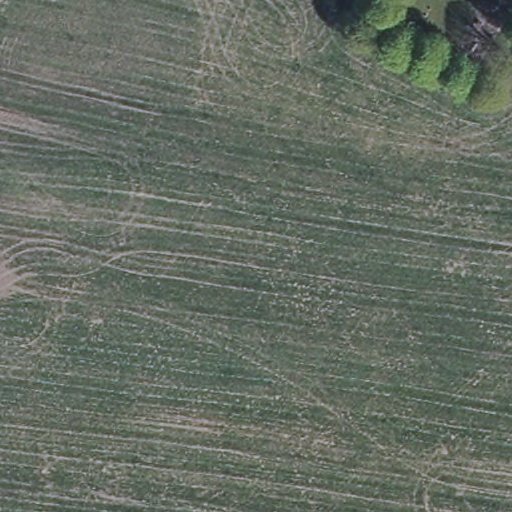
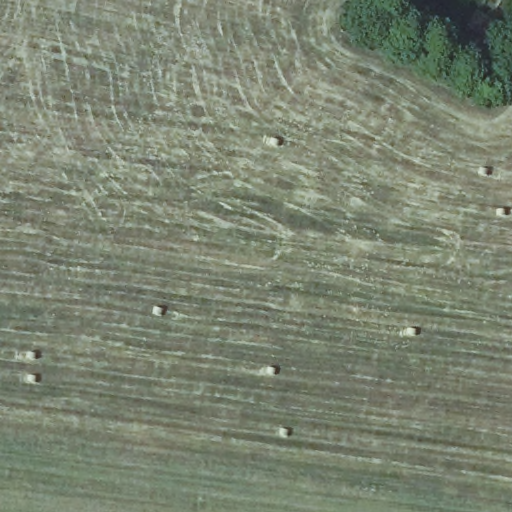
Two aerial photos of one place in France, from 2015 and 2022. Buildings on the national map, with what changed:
[]

